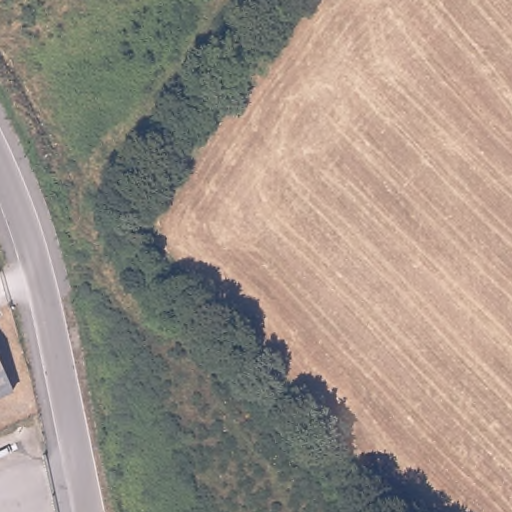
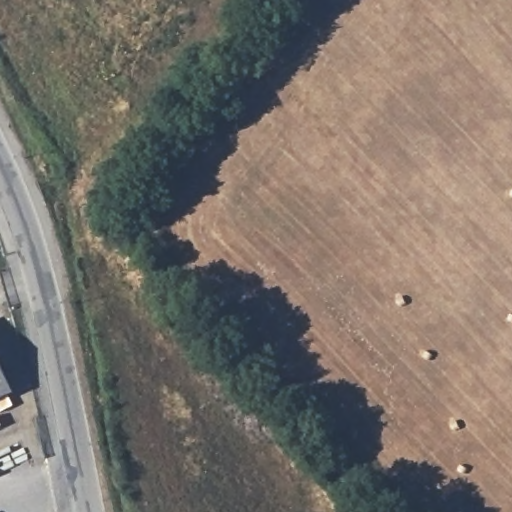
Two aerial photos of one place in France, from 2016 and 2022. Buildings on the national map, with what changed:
unchanged [(11,392),(0,397),(0,367),(11,392)]

